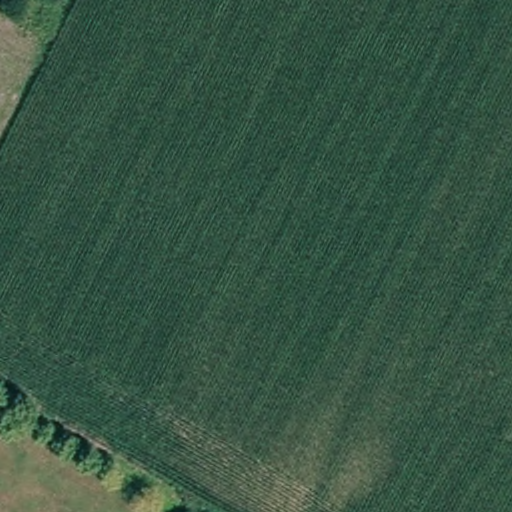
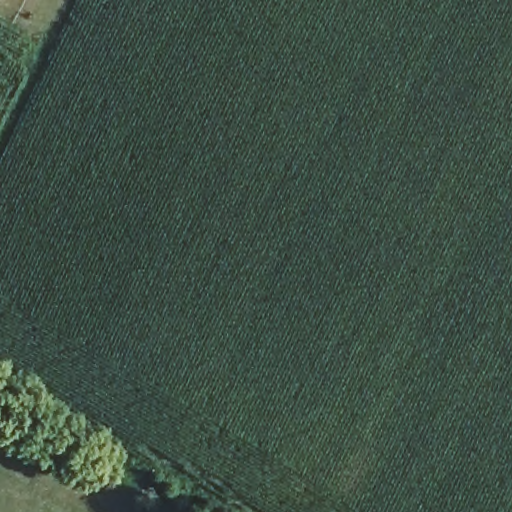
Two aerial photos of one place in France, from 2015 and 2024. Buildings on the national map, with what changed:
[]

